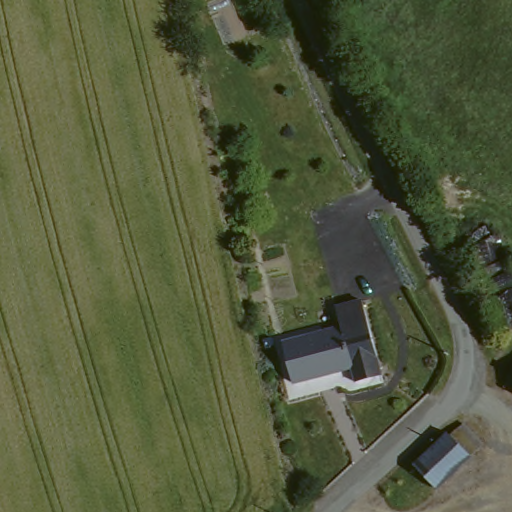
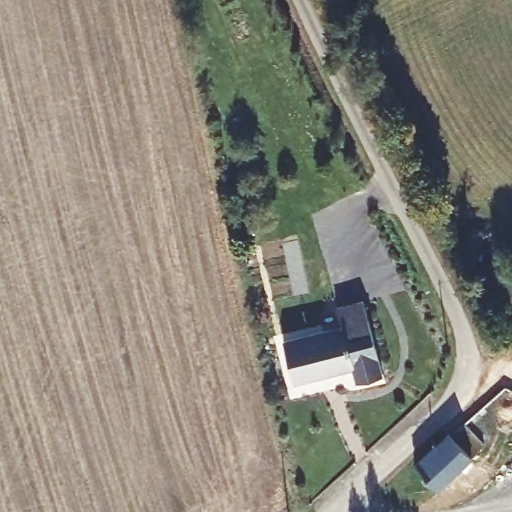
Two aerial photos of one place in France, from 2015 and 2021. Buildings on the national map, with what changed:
unchanged [(287,340),(347,324),(343,306),(368,299),(387,371),(360,378),(357,364),(298,379),(287,340)]
unchanged [(436,493),(413,471),(412,469),(444,437),(445,438),(463,422),(486,444),(436,493)]

